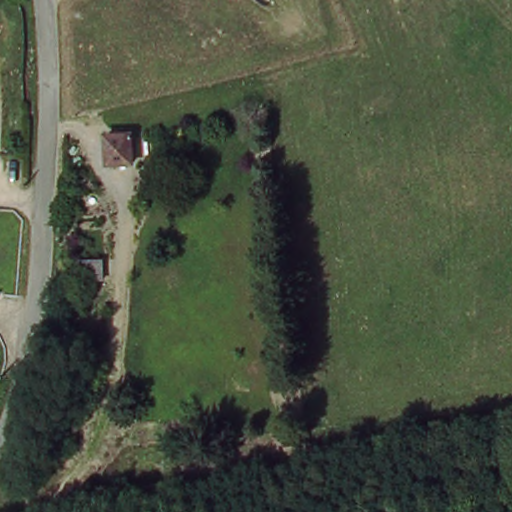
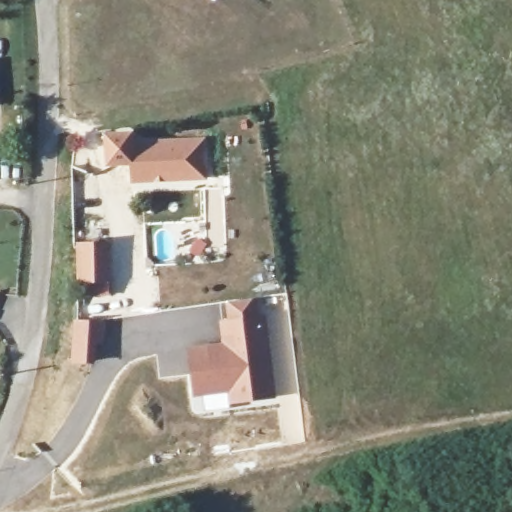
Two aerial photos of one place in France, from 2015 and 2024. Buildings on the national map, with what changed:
demolished [(140,130),(141,160),(115,161),(113,132),(140,130)]
new [(129,185),(128,168),(105,167),(103,134),(134,132),(134,140),(203,139),(206,180),(129,185)]
new [(229,404),(228,393),(193,398),(186,347),(221,343),(218,321),(224,320),(224,303),(274,297),(274,315),(266,316),(279,400),(229,404)]

